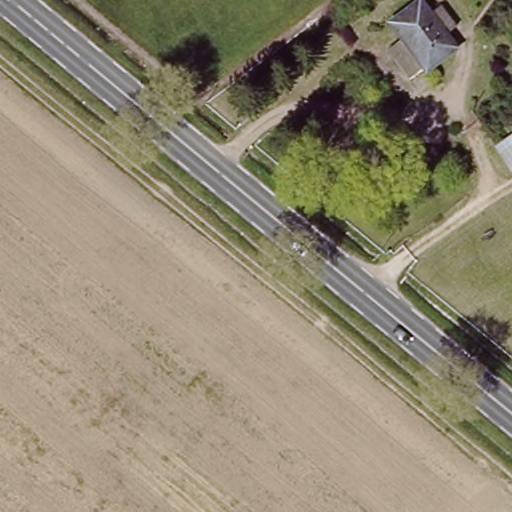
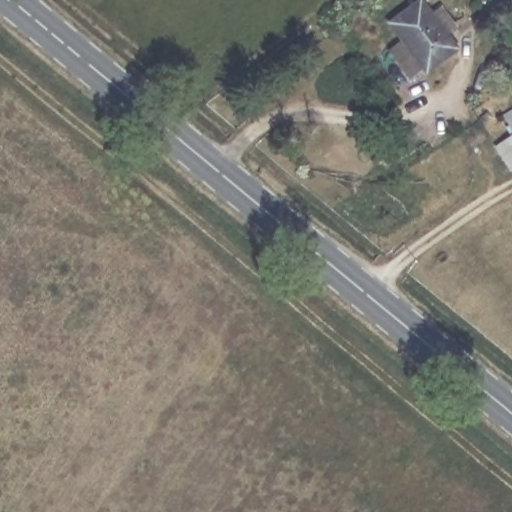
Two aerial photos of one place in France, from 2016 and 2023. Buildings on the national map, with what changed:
unchanged [(426,7),(437,0),(452,20),(442,29),(452,43),(423,66),(419,61),(406,71),(384,44),(397,32),(385,17),(407,0),(420,0),(426,7)]
unchanged [(508,131),(497,113),(512,104),(512,166),(507,169),(490,144),(508,131)]

